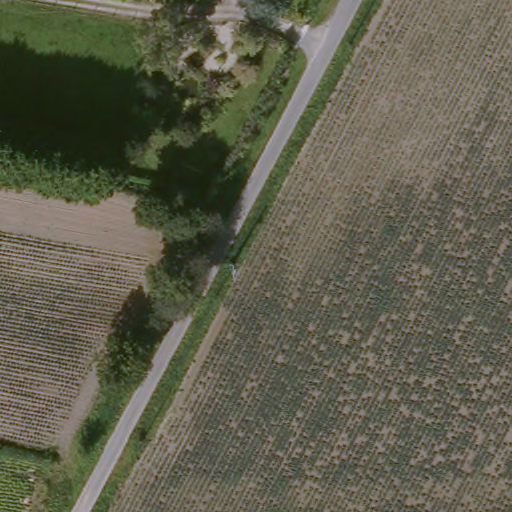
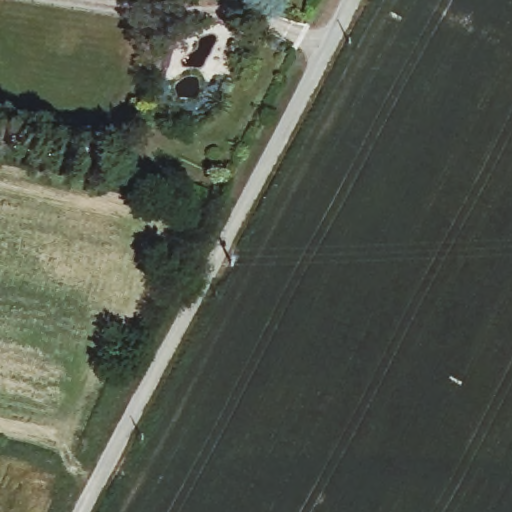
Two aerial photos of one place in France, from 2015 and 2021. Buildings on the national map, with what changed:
[]

